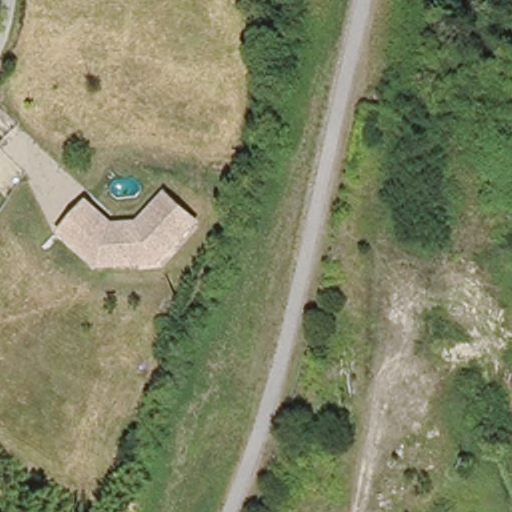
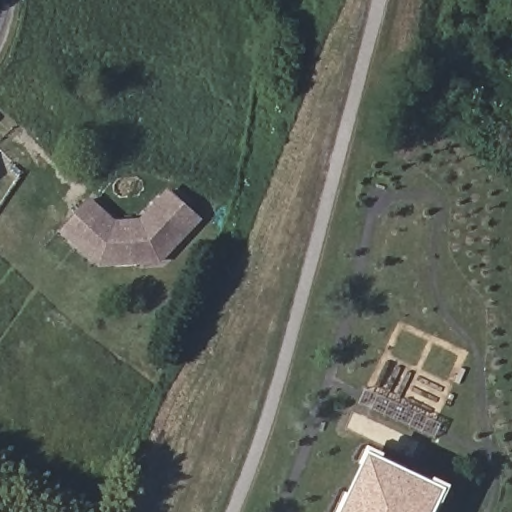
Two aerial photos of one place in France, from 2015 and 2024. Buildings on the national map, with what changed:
unchanged [(96,203),(120,224),(145,223),(172,192),(201,219),(162,262),(105,267),(69,233),(96,203)]
new [(441,487),(429,512),(338,512),(367,451),(441,487)]

